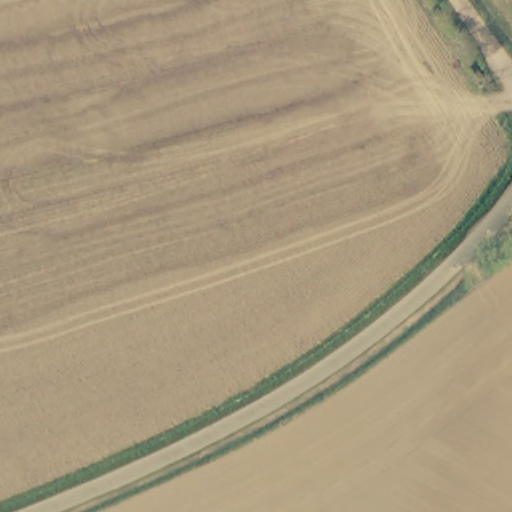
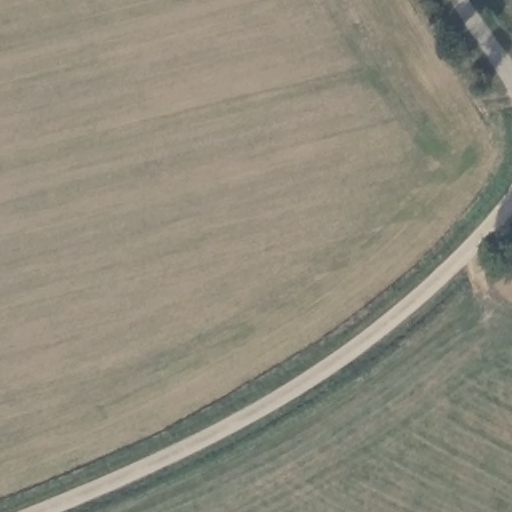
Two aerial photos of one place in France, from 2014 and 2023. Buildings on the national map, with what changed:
[]

